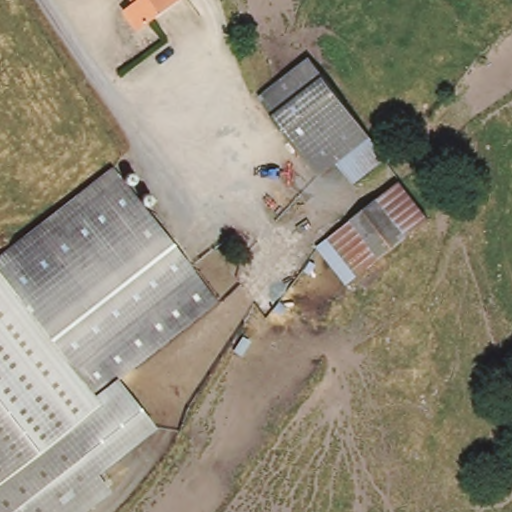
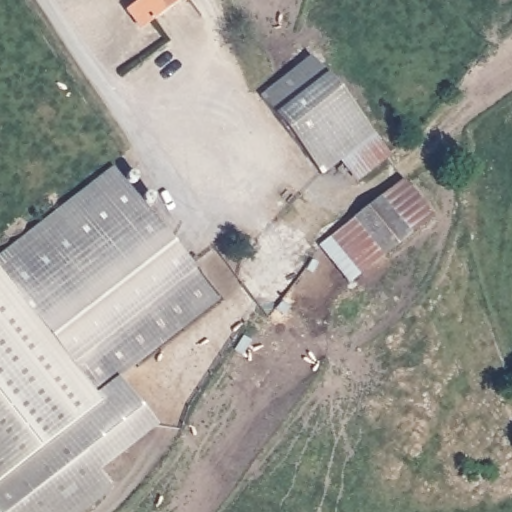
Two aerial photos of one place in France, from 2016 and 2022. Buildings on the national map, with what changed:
unchanged [(121,6),(131,0),(174,0),(135,27),(121,6)]
unchanged [(378,153),(381,158),(350,182),(332,161),(313,176),(259,100),(312,58),(378,153)]
unchanged [(116,377),(154,428),(96,474),(107,491),(80,512),(0,512),(0,252),(110,166),(214,304),(116,377)]
unchanged [(370,201),(392,183),(421,222),(398,240),(370,201)]
unchanged [(347,220),(370,201),(398,240),(376,258),(347,220)]
unchanged [(347,220),(376,258),(349,278),(322,244),(347,220)]

